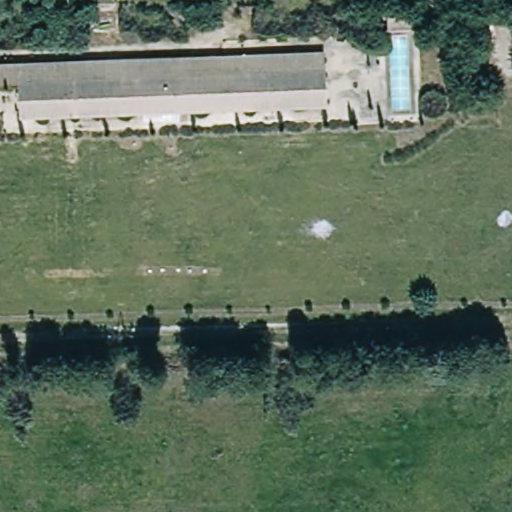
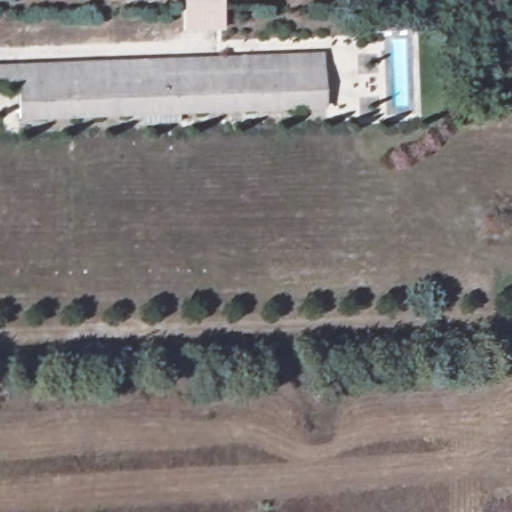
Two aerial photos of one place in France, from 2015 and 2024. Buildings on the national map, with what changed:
new [(185,30),(185,0),(224,0),(224,29),(185,30)]
unchanged [(18,85),(0,86),(0,64),(322,51),(325,108),(20,120),(18,85)]

